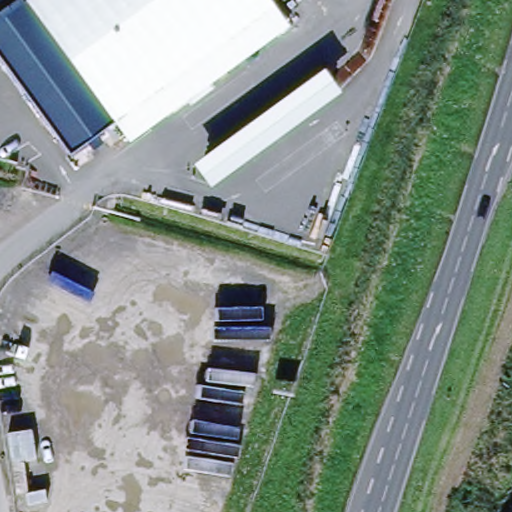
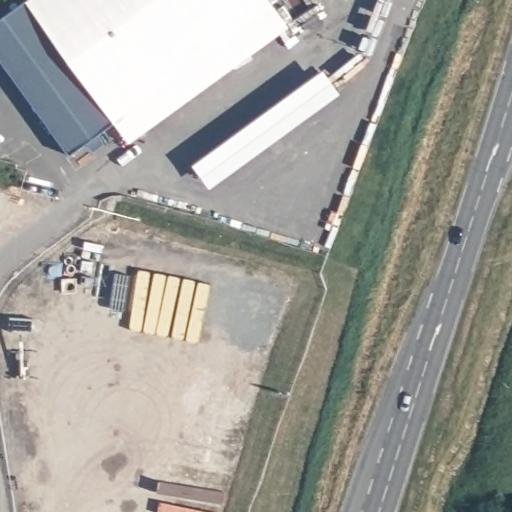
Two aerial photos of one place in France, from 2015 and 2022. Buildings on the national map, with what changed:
unchanged [(128,145),(115,126),(70,158),(0,60),(0,24),(32,0),(270,0),(291,29),(128,145)]
unchanged [(341,96),(211,194),(193,168),(325,69),(341,96)]

